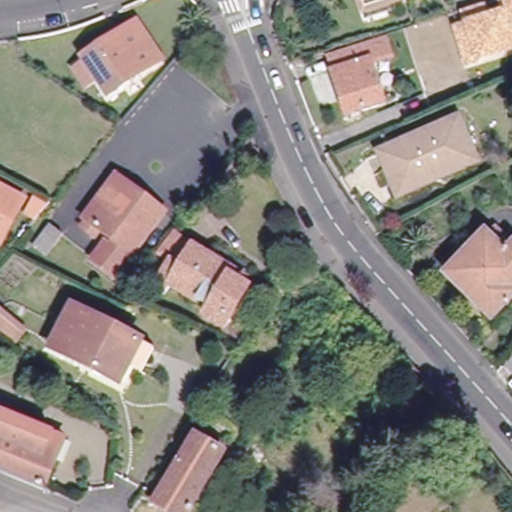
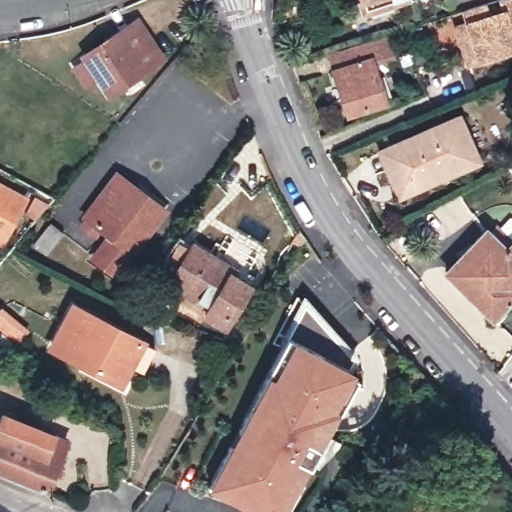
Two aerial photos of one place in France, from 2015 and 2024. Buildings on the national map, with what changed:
unchanged [(362,0),(384,0),(364,7),(362,0)]
unchanged [(466,68),(452,26),(462,22),(460,12),(485,5),(488,12),(500,7),(497,0),(512,0),(512,53),(466,68)]
unchanged [(80,55),(92,46),(114,31),(124,25),(138,16),(163,52),(117,83),(107,67),(94,76),(80,55)]
unchanged [(396,57),(373,64),(384,102),(350,112),(337,72),(345,68),(341,54),(390,39),(396,57)]
unchanged [(384,152),(391,149),(460,121),(478,166),(442,181),(402,198),(384,152)]
unchanged [(116,273),(93,257),(104,242),(110,247),(116,239),(103,228),(99,235),(85,225),(89,218),(86,215),(112,182),(119,174),(137,187),(165,209),(116,273)]
unchanged [(0,247),(0,194),(22,205),(0,247)]
unchanged [(62,236),(45,257),(32,247),(50,227),(62,236)]
unchanged [(495,318),(450,274),(488,232),(509,252),(512,248),(512,299),(495,318)]
unchanged [(229,280),(243,290),(227,317),(231,318),(225,328),(205,315),(210,307),(174,285),(171,292),(159,283),(172,261),(162,253),(178,233),(196,245),(236,270),(229,280)]
new [(358,360),(357,378),(287,512),(250,512),(208,489),(286,337),(303,295),(358,360)]
unchanged [(14,332),(0,320),(0,305),(22,323),(14,332)]
unchanged [(144,367),(130,360),(119,381),(50,347),(71,305),(134,336),(154,345),(144,367)]
unchanged [(68,436),(47,490),(0,471),(0,420),(4,410),(68,436)]
demolished [(225,457),(190,512),(168,512),(155,504),(195,438),(225,457)]

